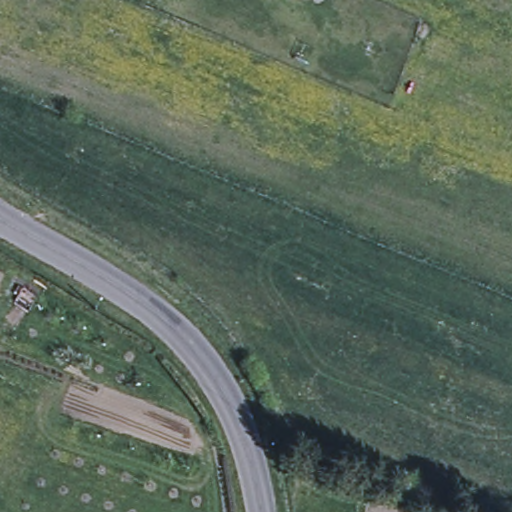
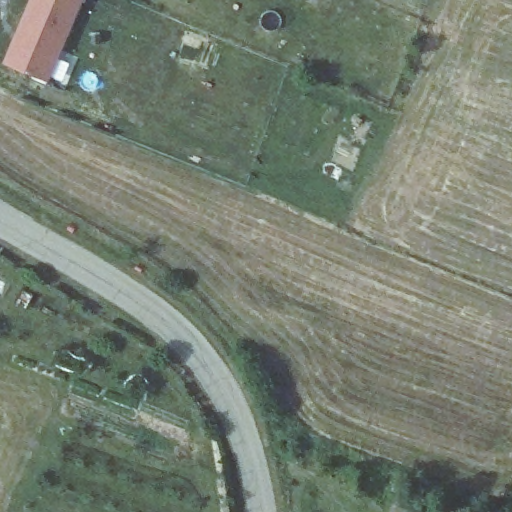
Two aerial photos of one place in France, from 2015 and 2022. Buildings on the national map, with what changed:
new [(49,83),(5,64),(30,0),(83,0),(49,83)]

